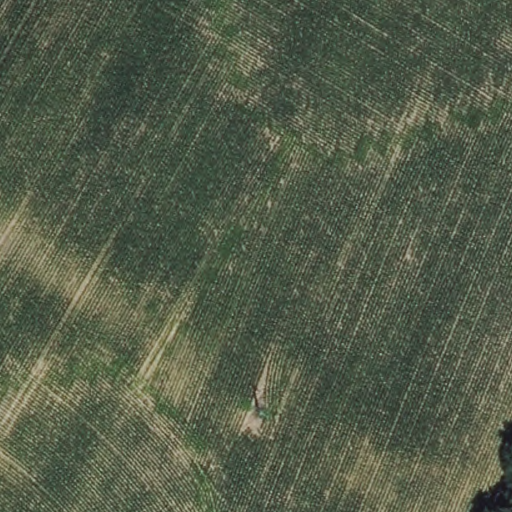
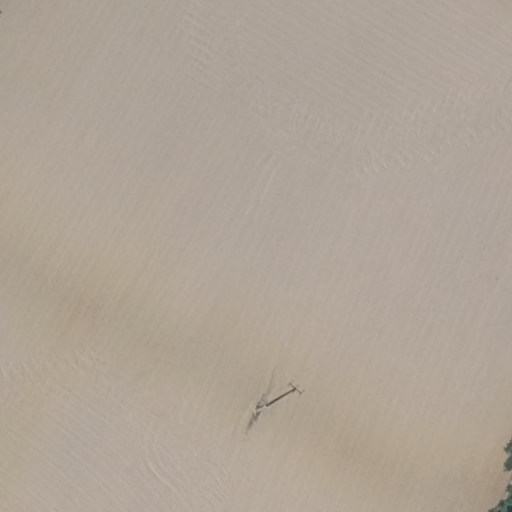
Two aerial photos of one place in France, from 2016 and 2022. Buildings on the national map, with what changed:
[]

